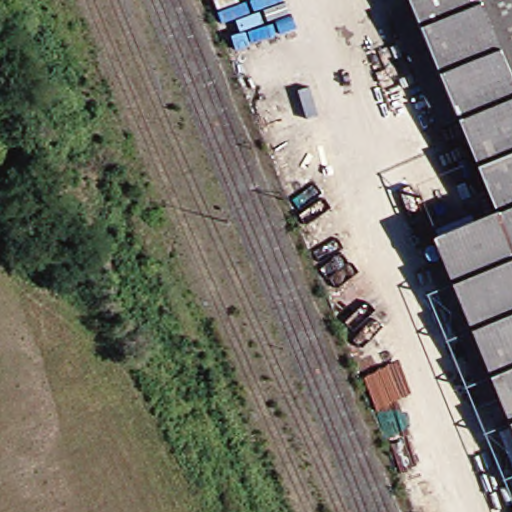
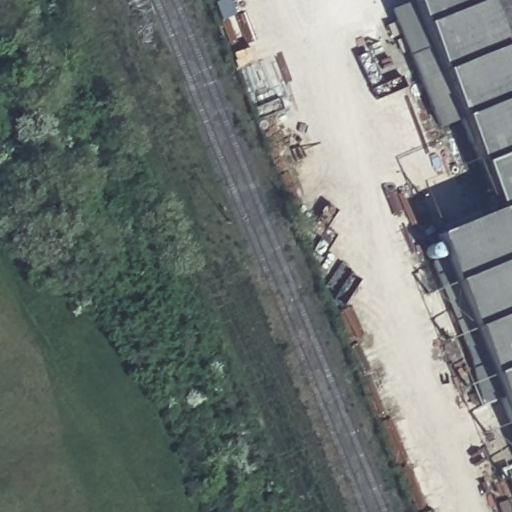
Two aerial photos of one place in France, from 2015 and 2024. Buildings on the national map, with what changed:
unchanged [(496,395),(476,403),(459,348),(424,260),(438,255),(428,232),(488,207),(448,115),(429,123),(381,10),(402,1),(401,0),(484,0),(512,68),(512,434),(496,395)]
unchanged [(484,0),(512,0),(512,68),(484,0)]

